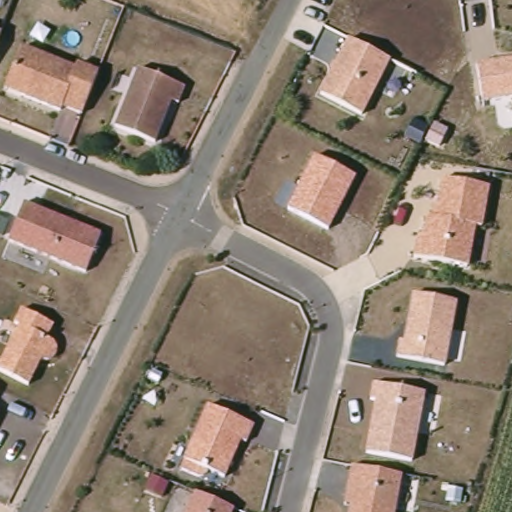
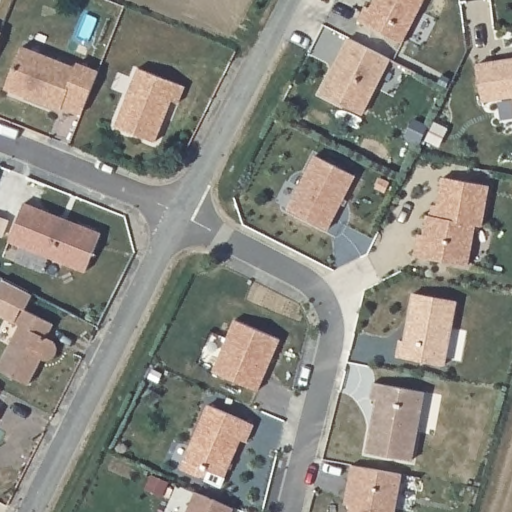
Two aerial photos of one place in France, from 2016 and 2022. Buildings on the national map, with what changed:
new [(367,10),(372,0),(422,0),(399,44),(355,22),(362,7),(367,10)]
unchanged [(363,115),(319,95),(346,39),(390,61),(363,115)]
unchanged [(20,50),(71,71),(73,66),(96,75),(80,115),(62,107),(58,117),(18,100),(21,93),(6,87),(20,50)]
unchanged [(476,64),(512,59),(512,98),(481,104),(476,64)]
unchanged [(187,87),(180,104),(172,102),(158,135),(154,139),(119,125),(142,71),(187,87)]
unchanged [(356,175),(327,231),(286,209),(312,157),(356,175)]
unchanged [(422,236),(424,214),(430,216),(432,202),(438,202),(441,179),(490,187),(483,227),(476,226),(469,265),(415,257),(417,237),(422,236)]
unchanged [(98,234),(83,275),(8,246),(22,207),(98,234)]
unchanged [(399,338),(403,340),(414,293),(457,303),(444,367),(395,357),(399,338)]
unchanged [(16,318),(22,308),(53,325),(47,337),(54,341),(58,347),(58,353),(55,357),(50,358),(43,357),(31,381),(0,364),(22,322),(16,318)]
new [(233,322),(278,342),(256,392),(211,373),(233,322)]
unchanged [(376,400),(371,398),(374,383),(424,391),(412,461),(366,453),(376,400)]
unchanged [(205,470),(202,479),(181,469),(184,460),(208,407),(253,423),(245,445),(240,442),(225,478),(205,470)]
unchanged [(351,465),(400,472),(395,512),(349,512),(350,507),(344,507),(351,465)]
unchanged [(236,512),(185,512),(194,490),(238,508),(236,512)]
unchanged [(9,496),(4,505),(0,502),(0,491),(9,496)]

